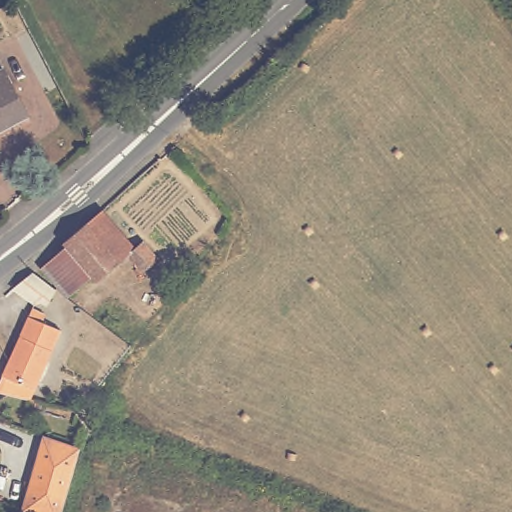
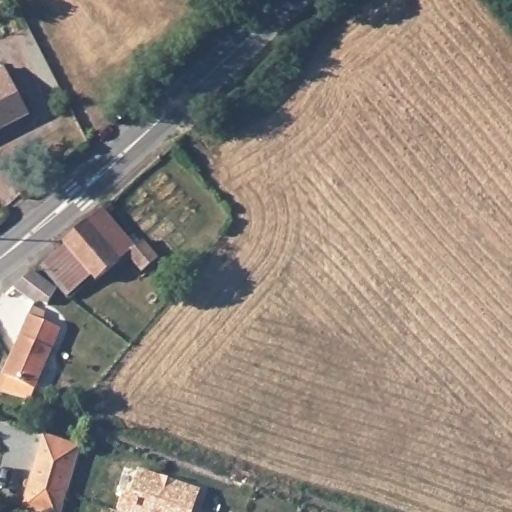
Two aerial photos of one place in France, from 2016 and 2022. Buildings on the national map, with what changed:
unchanged [(25,112),(0,125),(0,70),(2,69),(25,112)]
unchanged [(101,210),(135,248),(142,242),(158,260),(141,273),(126,256),(96,282),(92,278),(67,300),(40,268),(65,247),(62,243),(101,210)]
unchanged [(31,272),(56,291),(46,307),(39,303),(35,305),(12,288),(31,272)]
unchanged [(0,381),(31,308),(44,315),(43,323),(61,332),(31,401),(0,393),(0,381)]
unchanged [(82,448),(63,512),(24,512),(20,511),(43,434),(82,448)]
new [(199,492),(192,512),(118,512),(124,495),(131,497),(139,472),(199,492)]

